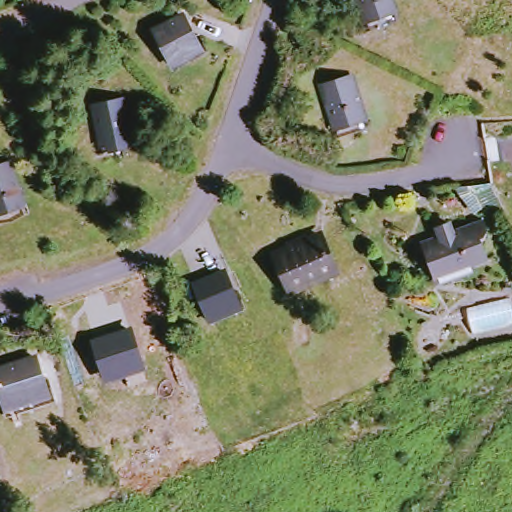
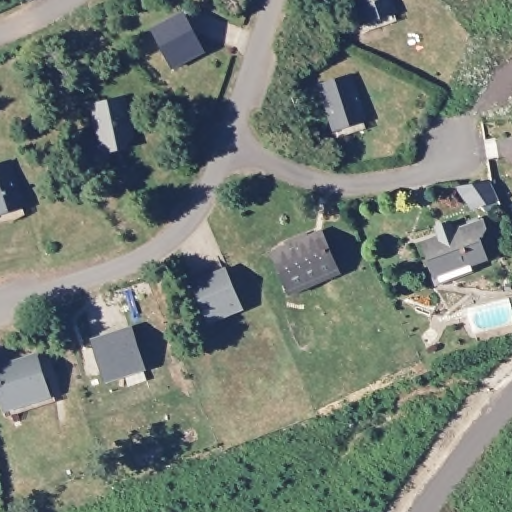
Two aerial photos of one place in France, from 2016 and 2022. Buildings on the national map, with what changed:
unchanged [(344,0),(376,0),(381,13),(352,25),(344,0)]
unchanged [(168,64),(153,36),(179,19),(195,47),(168,64)]
unchanged [(333,133),(316,96),(348,82),(365,118),(333,133)]
unchanged [(88,151),(80,114),(113,106),(122,144),(88,151)]
unchanged [(0,215),(0,169),(7,167),(21,207),(0,215)]
unchanged [(453,228),(480,218),(483,218),(484,221),(485,225),(482,232),(474,238),(482,252),(470,257),(474,264),(440,279),(437,272),(438,272),(424,241),(437,235),(433,225),(449,219),(453,228)]
unchanged [(305,285),(285,291),(280,279),(271,249),(284,242),(282,237),(300,231),(302,239),(315,234),(328,269),(330,275),(305,285)]
unchanged [(227,304),(199,316),(188,287),(217,275),(227,304)]
unchanged [(137,363),(95,378),(85,346),(125,334),(137,363)]
unchanged [(33,356),(42,387),(0,399),(0,365),(33,356)]

